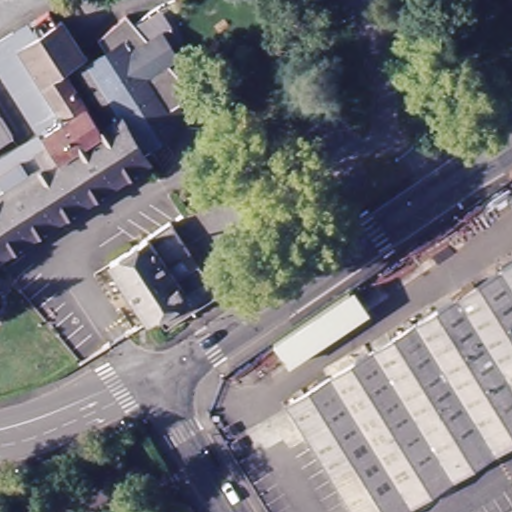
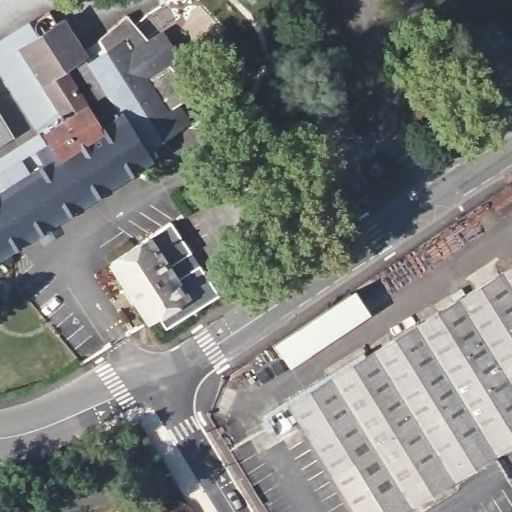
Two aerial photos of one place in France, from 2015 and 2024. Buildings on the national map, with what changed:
unchanged [(508,0),(512,0),(512,5),(508,0)]
unchanged [(33,25),(41,39),(64,24),(91,65),(104,56),(102,54),(111,49),(105,41),(135,20),(155,48),(162,44),(173,38),(187,62),(176,69),(173,70),(196,103),(180,112),(191,130),(179,137),(154,151),(158,157),(153,160),(154,161),(2,260),(0,256),(0,163),(45,134),(0,64),(0,47),(18,35),(33,25)]
unchanged [(0,149),(0,105),(20,137),(0,149)]
unchanged [(203,268),(222,297),(171,328),(163,317),(153,323),(115,264),(176,226),(195,256),(203,268)]
unchanged [(401,512),(353,512),(286,405),(512,267),(512,443),(401,512)]
unchanged [(352,296),(366,317),(296,365),(282,343),(352,296)]

